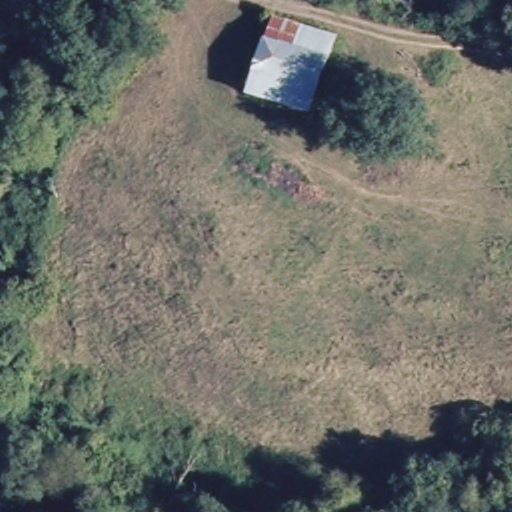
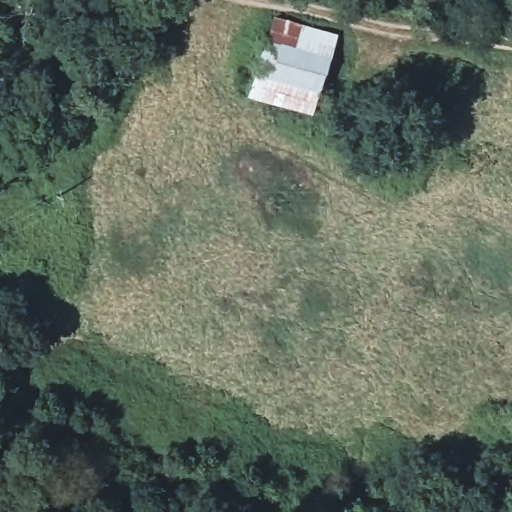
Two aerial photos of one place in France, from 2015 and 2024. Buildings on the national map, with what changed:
unchanged [(307,115),(245,98),(270,19),(326,36),(307,115)]

